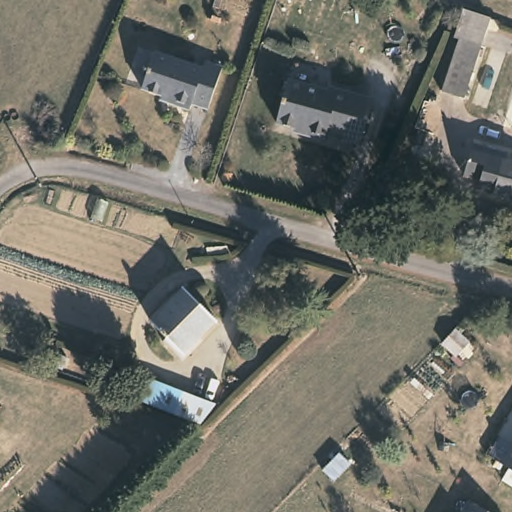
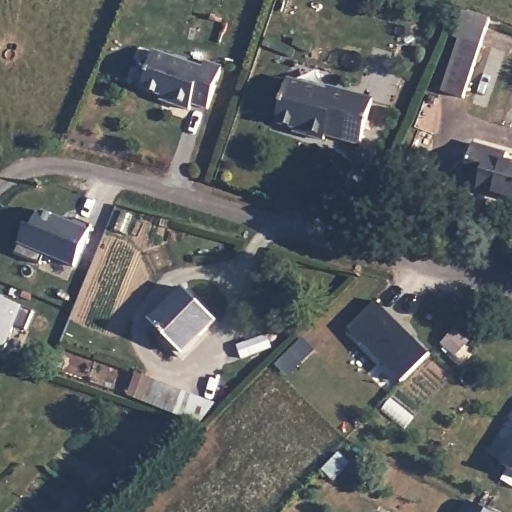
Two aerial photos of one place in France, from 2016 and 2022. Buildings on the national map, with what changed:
unchanged [(436,83),(455,26),(448,23),(453,10),(458,12),(461,1),(488,9),(484,20),(461,92),(436,83)]
unchanged [(208,71),(211,65),(230,71),(217,112),(199,107),(196,113),(175,107),(176,103),(144,92),(156,54),(208,71)]
unchanged [(333,93),(334,89),(375,100),(362,147),(332,138),(330,143),(307,139),(307,135),(278,125),(290,81),(333,93)]
unchanged [(507,158),(512,160),(512,200),(478,189),(481,179),(463,173),(473,139),(509,151),(507,158)]
new [(18,242),(23,227),(35,215),(45,211),(73,221),(75,218),(92,225),(91,230),(77,266),(45,254),(41,263),(15,254),(18,242)]
unchanged [(216,327),(177,353),(152,316),(190,289),(216,327)]
new [(24,306),(35,311),(27,328),(15,324),(5,350),(0,348),(0,297),(24,306)]
new [(377,300),(432,355),(404,383),(347,329),(377,300)]
unchanged [(141,372),(221,402),(205,419),(133,391),(141,372)]
unchanged [(512,445),(512,470),(501,463),(512,445)]
unchanged [(344,451),(356,463),(342,477),(330,465),(344,451)]
unchanged [(470,500),(492,511),(493,512),(464,512),(470,500)]

